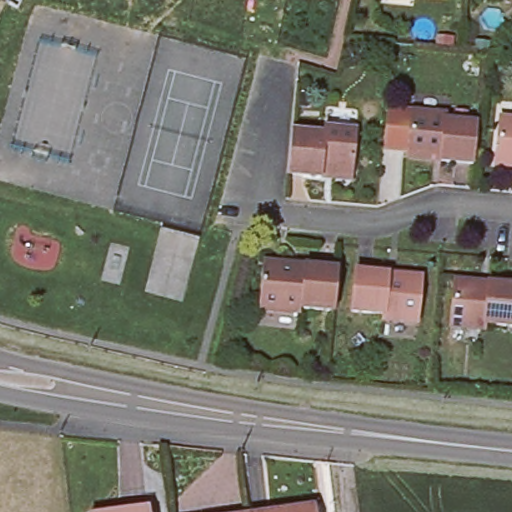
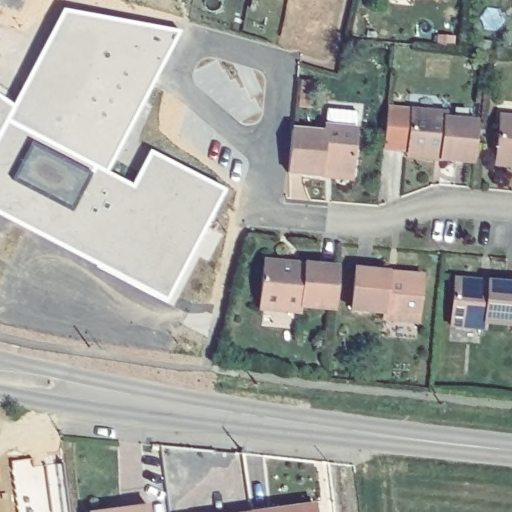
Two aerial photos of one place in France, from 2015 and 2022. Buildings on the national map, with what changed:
new [(65,10),(181,35),(108,170),(136,186),(153,151),(227,189),(171,303),(0,213),(0,96),(17,109),(65,10)]
unchanged [(404,149),(407,112),(441,113),(440,120),(474,122),(471,163),(437,159),(404,155),(404,149)]
unchanged [(498,157),(502,118),(512,119),(512,164),(497,162),(498,157)]
unchanged [(323,174),(290,170),(294,131),(326,135),(328,128),(356,131),(353,171),(353,177),(323,174)]
unchanged [(336,308),(301,306),(301,312),(259,308),(264,266),(266,261),(304,265),(340,269),(336,308)]
unchanged [(384,317),(384,312),(354,308),(358,268),(389,272),(422,276),(422,284),(418,321),(384,317)]
unchanged [(485,320),(484,327),(453,324),(457,286),(457,278),(489,281),(512,283),(512,322),(485,320)]

